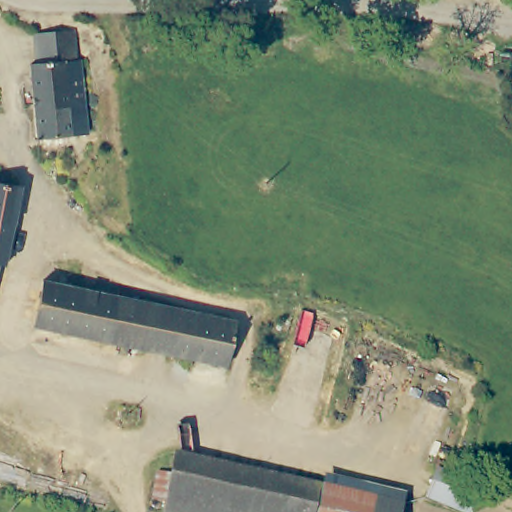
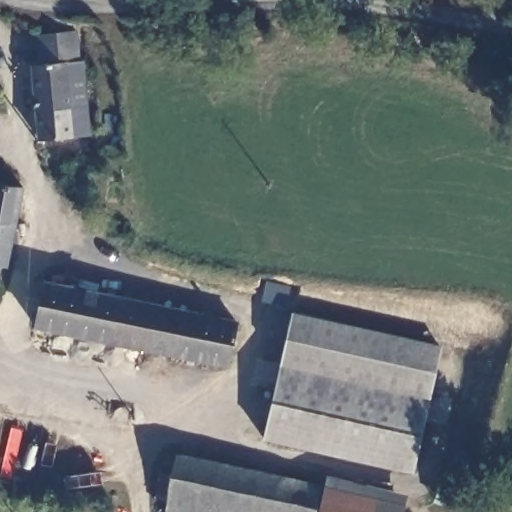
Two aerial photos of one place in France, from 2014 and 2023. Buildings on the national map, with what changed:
unchanged [(72,136),(37,139),(31,65),(37,65),(34,34),(74,30),(77,61),(66,62),(72,136)]
unchanged [(6,266),(0,265),(0,184),(22,187),(6,266)]
unchanged [(236,322),(227,367),(34,326),(44,282),(236,322)]
new [(292,310),(440,347),(412,472),(262,438),(292,310)]
unchanged [(402,506),(401,512),(164,512),(167,501),(154,498),(159,472),(172,475),(177,455),(402,506)]
unchanged [(473,512),(464,512),(426,497),(437,469),(482,487),(473,512)]

